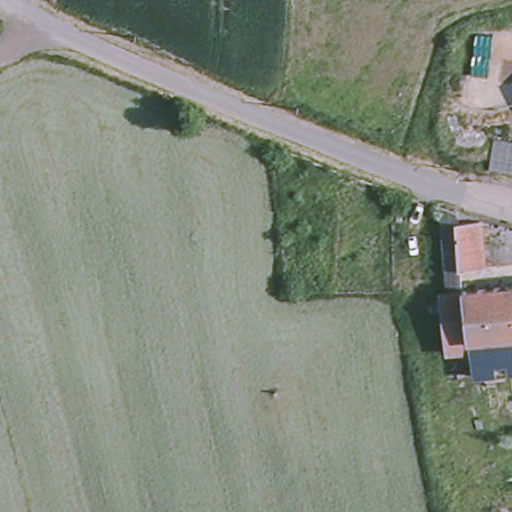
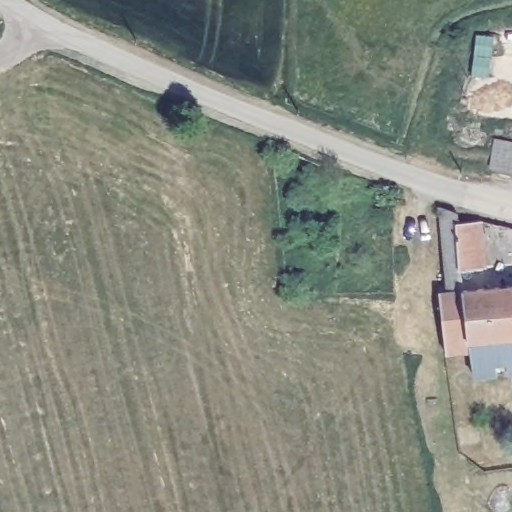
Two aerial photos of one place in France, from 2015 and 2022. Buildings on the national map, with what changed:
unchanged [(512,172),(493,169),(498,139),(512,141),(512,172)]
unchanged [(483,253),(486,253),(487,267),(461,269),(456,222),(481,220),(483,253)]
unchanged [(472,346),(463,284),(512,279),(512,284),(512,368),(508,368),(497,369),(474,372),(472,346)]
unchanged [(463,284),(472,346),(444,350),(436,287),(463,284)]

